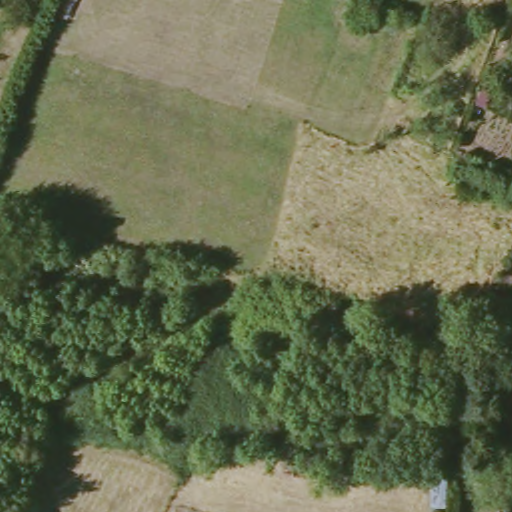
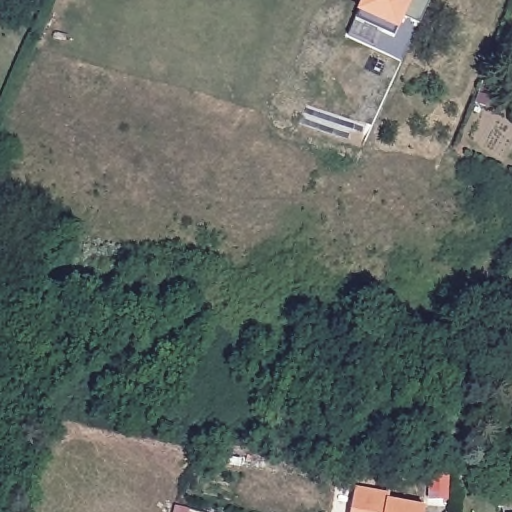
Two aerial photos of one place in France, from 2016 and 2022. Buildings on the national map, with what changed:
new [(355,12),(361,0),(432,0),(420,24),(406,18),(400,32),(394,38),(355,20),(358,14),(355,12)]
new [(355,488),(390,494),(389,499),(425,507),(424,512),(349,512),(355,488)]

